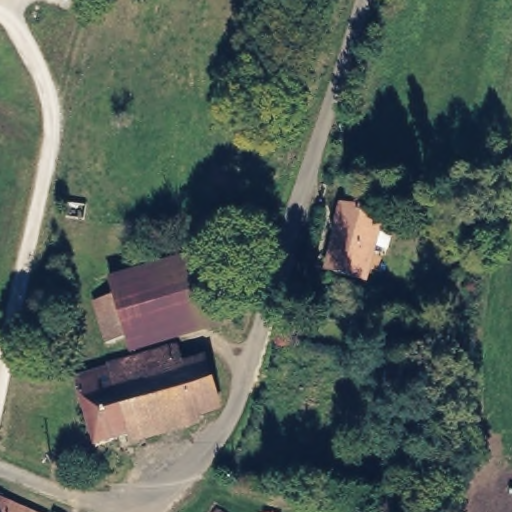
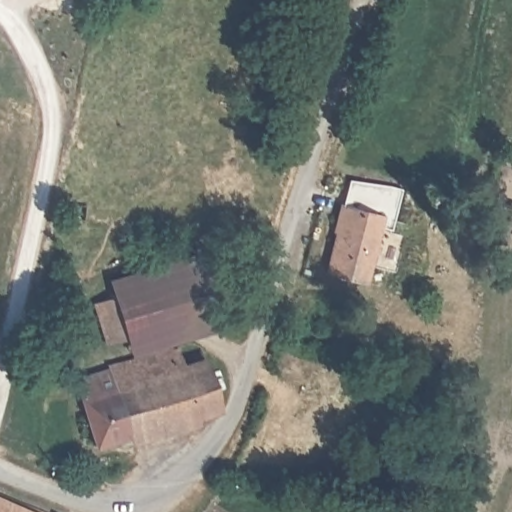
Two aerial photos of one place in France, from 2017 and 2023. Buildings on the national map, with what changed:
unchanged [(379,199),(374,215),(375,217),(376,217),(359,282),(321,271),(334,226),(331,225),(336,207),(339,207),(343,190),(379,199)]
unchanged [(84,207),(82,222),(63,220),(65,205),(84,207)]
unchanged [(452,214),(451,227),(440,226),(442,212),(452,214)]
unchanged [(213,266),(230,321),(122,353),(111,316),(130,309),(125,292),(213,266)]
unchanged [(100,447),(80,382),(112,372),(112,369),(182,347),(188,368),(209,362),(222,409),(100,447)]
unchanged [(0,512),(0,501),(26,512),(0,512)]

